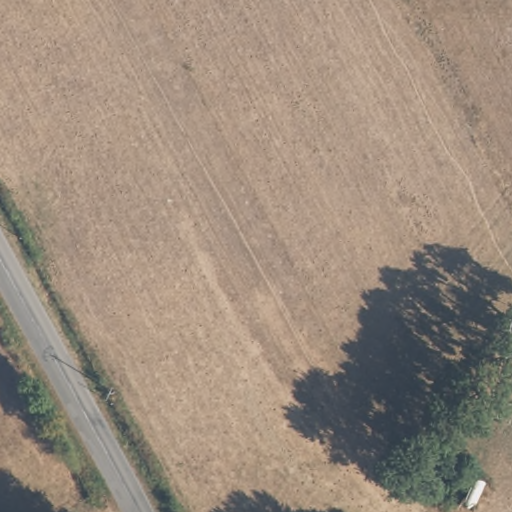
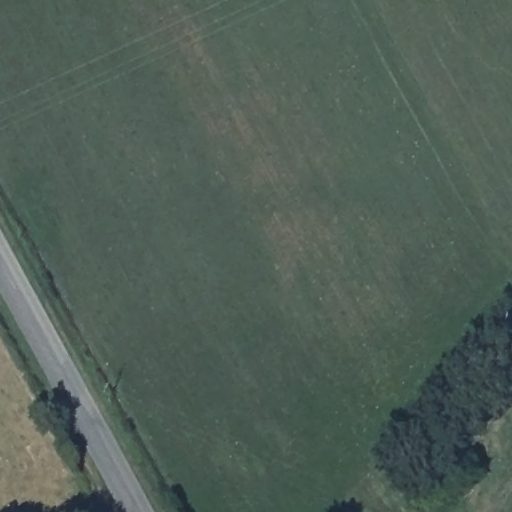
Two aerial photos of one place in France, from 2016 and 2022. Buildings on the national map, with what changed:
[]

